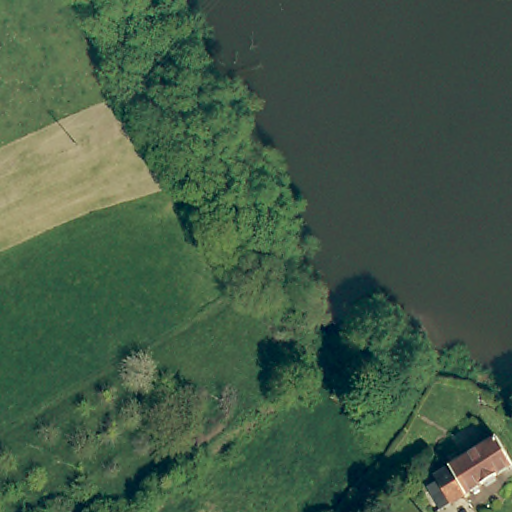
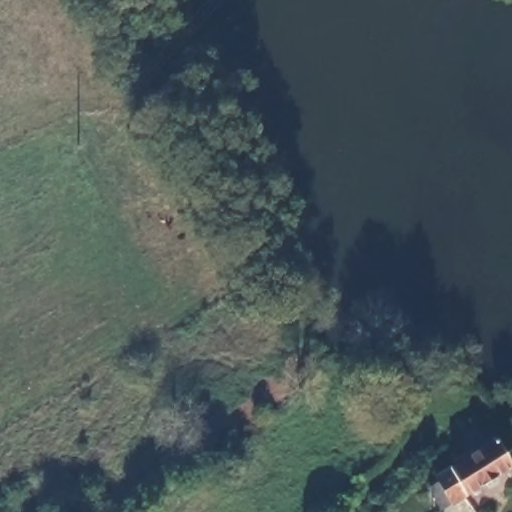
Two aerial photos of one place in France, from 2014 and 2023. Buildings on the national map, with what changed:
unchanged [(436,493),(447,484),(440,474),(498,438),(512,460),(512,470),(447,511),(436,493)]

